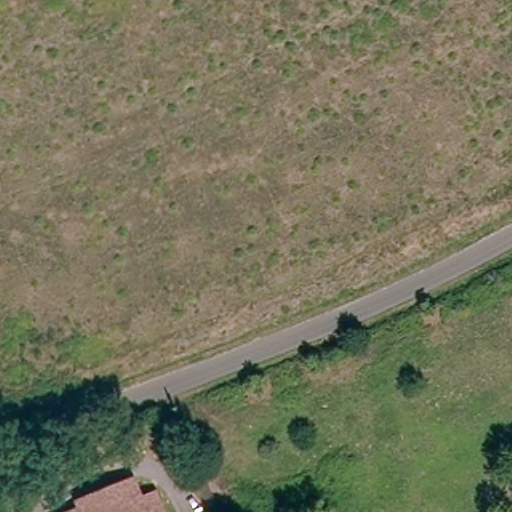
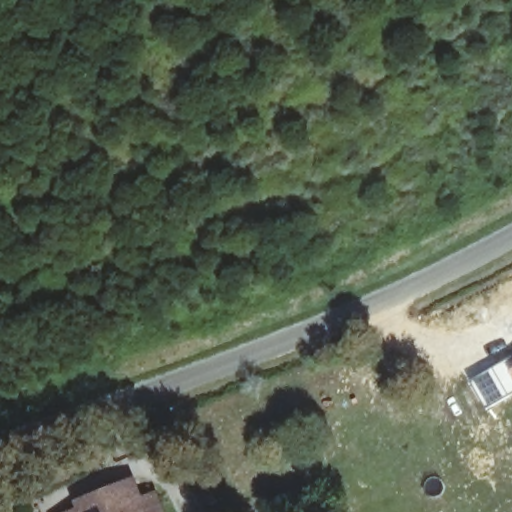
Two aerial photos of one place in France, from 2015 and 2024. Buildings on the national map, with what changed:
new [(508,370),(512,377),(512,395),(488,410),(471,381),(504,362),(508,370)]
new [(512,377),(508,370),(512,368),(512,377)]
unchanged [(82,510),(79,502),(98,495),(128,482),(131,491),(135,503),(153,497),(158,512),(76,512),(82,510)]
unchanged [(221,509),(223,512),(216,512),(221,509)]

